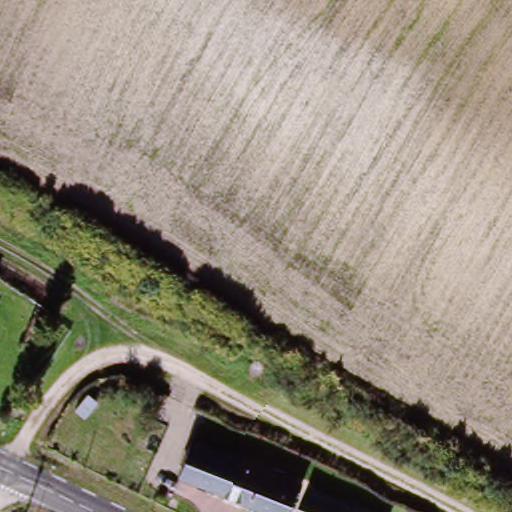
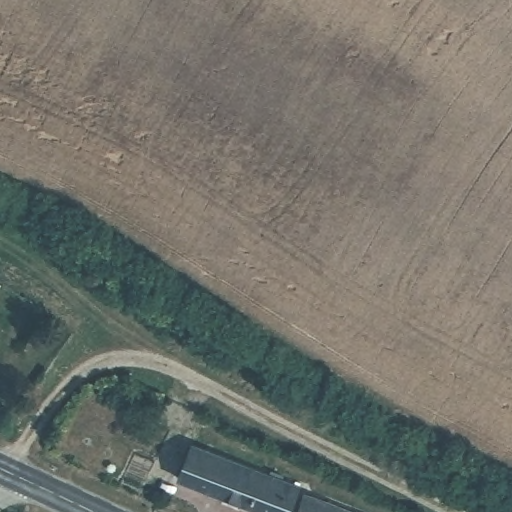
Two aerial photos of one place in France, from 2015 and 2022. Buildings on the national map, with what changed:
unchanged [(284,511),(185,468),(194,447),(293,491),(284,511)]
unchanged [(305,496),(342,512),(298,512),(305,496)]

